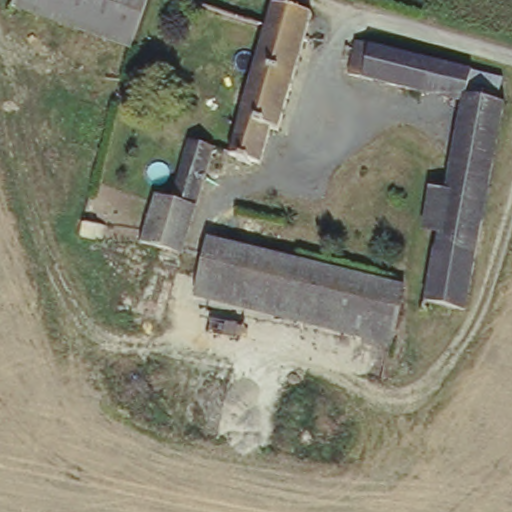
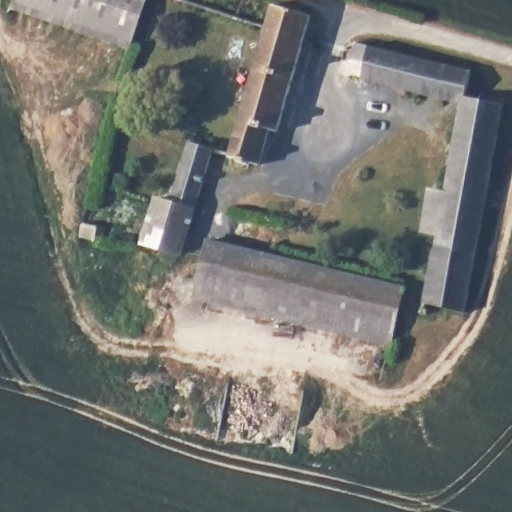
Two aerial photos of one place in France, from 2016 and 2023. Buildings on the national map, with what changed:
unchanged [(10,11),(13,0),(147,0),(133,50),(10,11)]
unchanged [(315,36),(291,127),(279,124),(267,161),(236,151),(277,19),(281,1),(322,13),(315,36)]
unchanged [(468,315),(428,307),(462,111),(346,79),(353,52),(356,43),(469,74),(465,97),(503,108),(468,315)]
unchanged [(216,151),(179,260),(149,252),(152,242),(146,241),(161,198),(174,201),(193,144),(216,151)]
unchanged [(113,211),(109,227),(94,222),(99,207),(113,211)]
unchanged [(406,286),(389,347),(190,298),(207,238),(406,286)]

